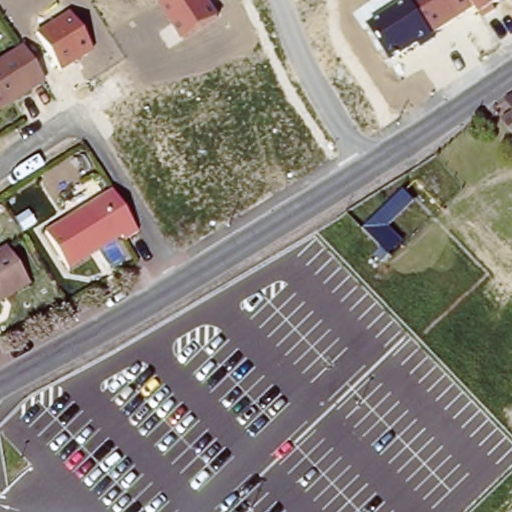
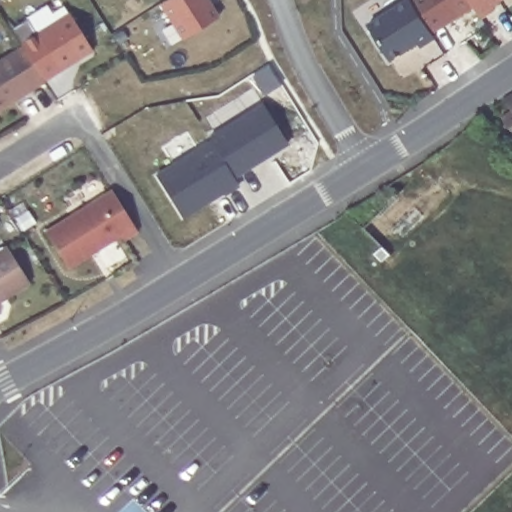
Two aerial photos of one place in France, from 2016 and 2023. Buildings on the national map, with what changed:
unchanged [(166,0),(210,0),(218,14),(181,37),(161,3),(166,0)]
unchanged [(405,0),(501,0),(493,5),(496,9),(483,18),(474,8),(434,35),(436,38),(422,48),(418,43),(391,60),(367,24),(405,0)]
unchanged [(68,13),(93,50),(61,71),(38,32),(68,13)]
unchanged [(0,61),(22,47),(43,81),(0,109),(0,61)]
unchanged [(504,98),(512,93),(512,109),(504,98)]
new [(206,136),(263,102),(289,144),(233,180),(208,140),(206,136)]
unchanged [(500,116),(512,109),(512,133),(500,116)]
new [(173,162),(175,165),(194,152),(193,150),(208,140),(236,185),(221,194),(218,189),(203,198),(205,201),(179,217),(153,175),(173,162)]
unchanged [(124,240),(121,235),(68,268),(45,232),(112,190),(138,231),(124,240)]
unchanged [(29,278),(0,297),(0,246),(6,242),(29,278)]
demolished [(386,261),(379,254),(381,252),(386,247),(393,255),(386,261)]

